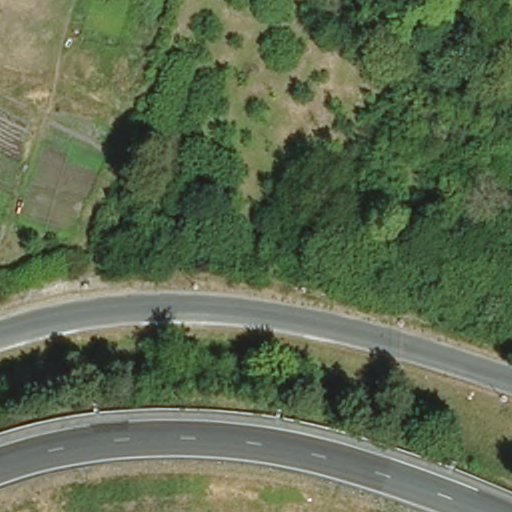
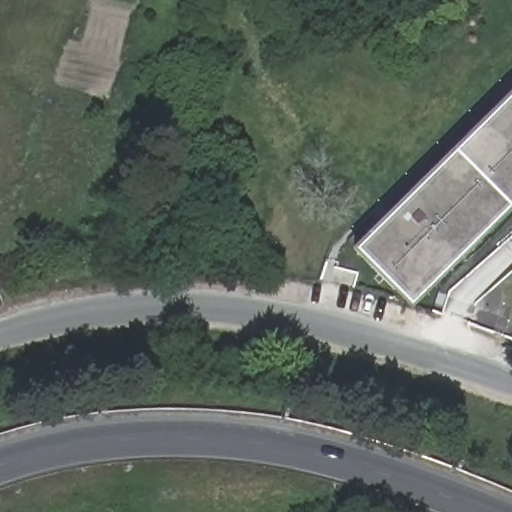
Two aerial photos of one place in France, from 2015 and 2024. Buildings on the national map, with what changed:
new [(352,249),(512,91),(512,201),(408,304),(352,249)]

